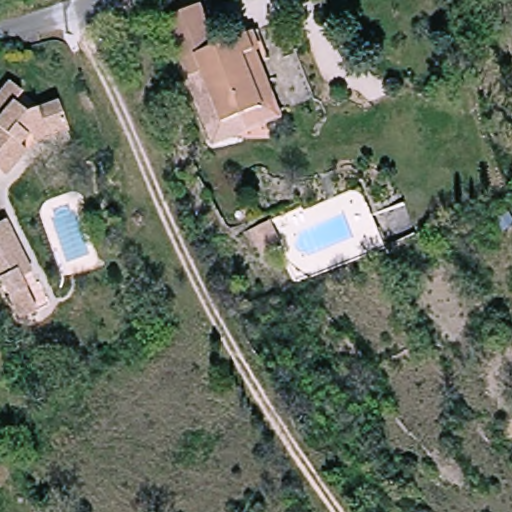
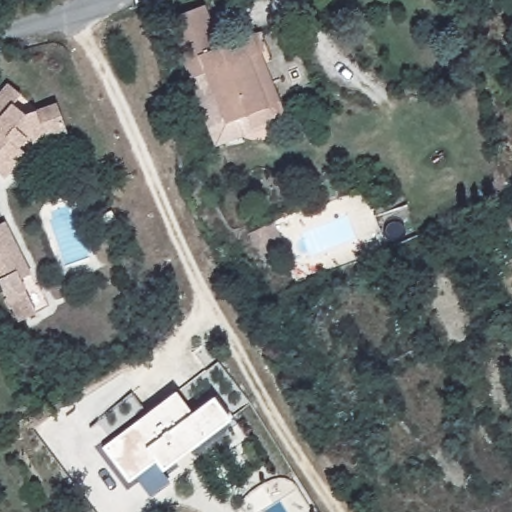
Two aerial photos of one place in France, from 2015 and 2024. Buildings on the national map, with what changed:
unchanged [(267,113),(227,130),(205,81),(191,87),(166,30),(198,15),(217,55),(248,42),(255,58),(277,109),(267,113)]
unchanged [(0,178),(0,93),(6,86),(20,97),(12,107),(22,115),(55,105),(61,126),(63,134),(31,145),(26,140),(17,150),(23,155),(12,168),(3,180),(0,178)]
unchanged [(263,260),(249,228),(271,221),(283,249),(263,260)]
unchanged [(21,323),(0,283),(0,226),(3,225),(31,276),(20,282),(37,315),(21,323)]
new [(161,472),(169,482),(150,498),(134,477),(129,481),(103,446),(174,392),(191,413),(212,398),(229,421),(161,472)]

